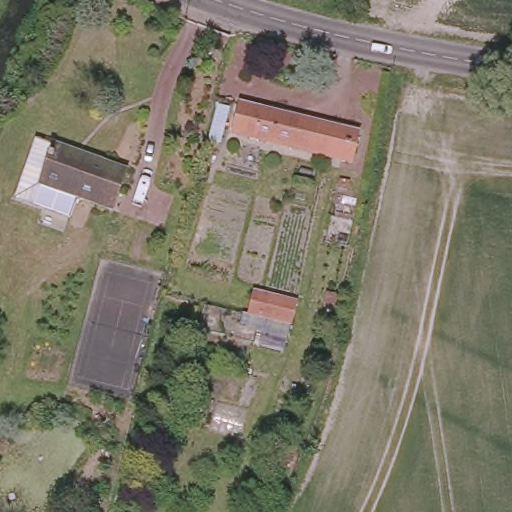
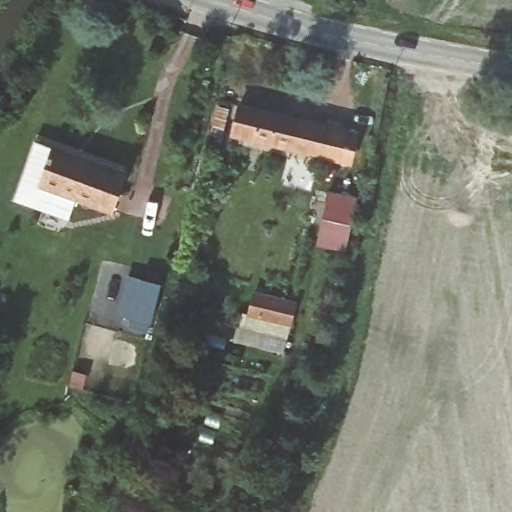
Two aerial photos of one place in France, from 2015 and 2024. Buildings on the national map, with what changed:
unchanged [(232,129),(242,98),(359,128),(352,157),(321,150),(252,134),(232,129)]
unchanged [(109,207),(73,194),(65,216),(12,196),(33,137),(122,169),(109,207)]
demolished [(349,195),(340,238),(316,234),(325,190),(349,195)]
new [(330,193),(358,200),(348,252),(317,247),(330,193)]
new [(152,322),(120,314),(129,274),(162,283),(152,322)]
unchanged [(245,318),(250,297),(288,306),(291,307),(287,329),(284,329),(245,318)]

